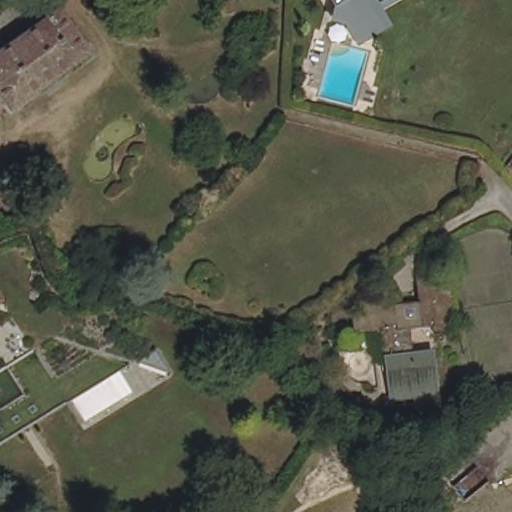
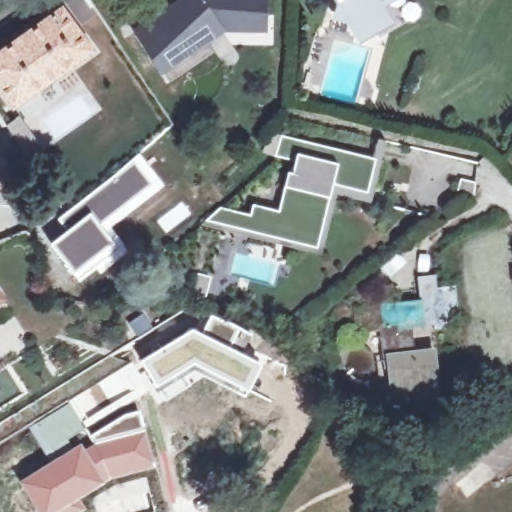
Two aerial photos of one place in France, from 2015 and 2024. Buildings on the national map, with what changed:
new [(175,0),(266,0),(264,34),(226,32),(209,42),(216,50),(168,83),(131,28),(175,0)]
unchanged [(397,21),(366,39),(345,0),(384,0),(397,21)]
unchanged [(6,11),(0,15),(0,2),(6,11)]
unchanged [(69,9),(97,52),(15,107),(0,83),(0,55),(69,9)]
new [(20,115),(43,151),(25,164),(1,129),(20,115)]
new [(205,222),(220,208),(250,215),(253,205),(278,211),(284,187),(288,173),(291,162),(274,157),(281,136),(376,159),(368,194),(334,185),(330,199),(318,249),(205,222)]
new [(138,153),(163,185),(107,230),(81,198),(138,153)]
new [(64,230),(55,218),(81,198),(107,230),(119,245),(79,281),(49,242),(64,230)]
new [(181,200),(192,214),(165,234),(155,221),(181,200)]
unchanged [(421,345),(436,342),(444,394),(404,399),(399,357),(393,357),(389,334),(386,335),(385,326),(362,330),(358,309),(388,304),(384,282),(399,280),(399,288),(406,287),(410,306),(422,304),(421,298),(427,297),(423,274),(442,271),(444,283),(461,280),(464,299),(455,301),(459,322),(440,324),(439,317),(423,319),(422,315),(416,316),(421,345)]
unchanged [(6,301),(0,304),(0,294),(6,301)]
unchanged [(144,359),(159,350),(170,367),(144,359)]
new [(68,400),(86,431),(68,443),(71,446),(49,460),(27,427),(68,400)]
new [(104,483),(84,447),(93,442),(89,435),(121,414),(140,409),(146,428),(155,468),(104,483)]
new [(71,446),(80,441),(84,447),(104,483),(80,498),(87,510),(83,512),(37,512),(18,481),(49,460),(71,446)]
demolished [(512,512),(478,512),(512,484),(512,512)]

